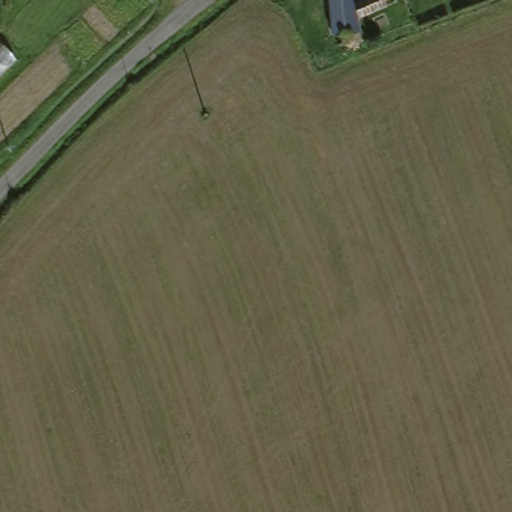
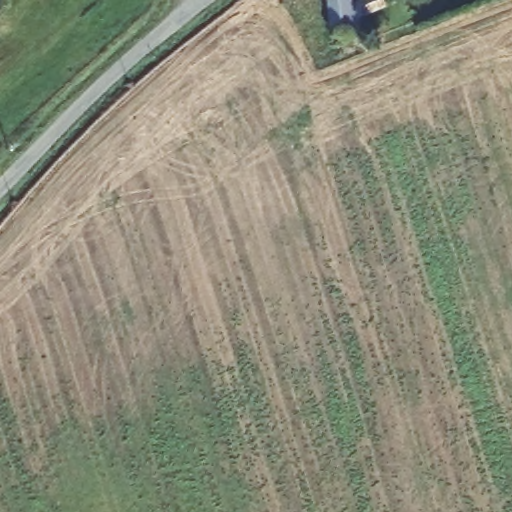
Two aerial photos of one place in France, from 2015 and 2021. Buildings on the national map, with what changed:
unchanged [(382,0),(385,6),(353,17),(358,32),(331,35),(329,0),(351,0),(351,2),(358,0),(382,0)]
unchanged [(17,64),(0,80),(0,45),(17,64)]

